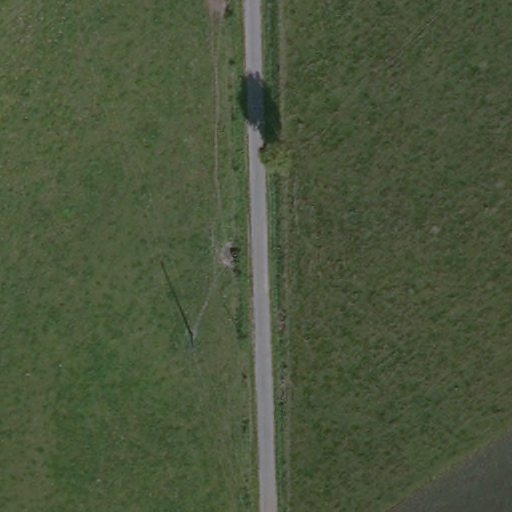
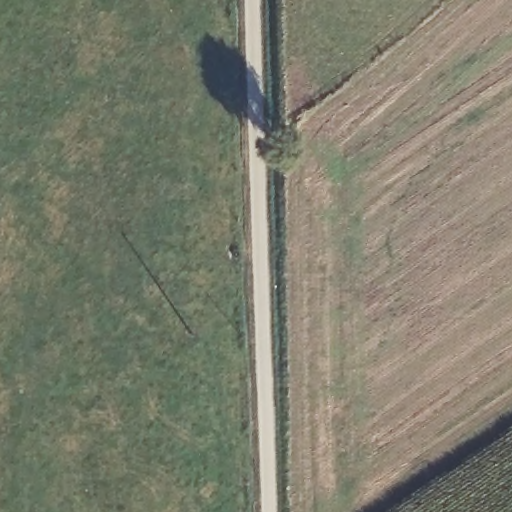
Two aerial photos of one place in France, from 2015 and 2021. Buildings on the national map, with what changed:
[]

